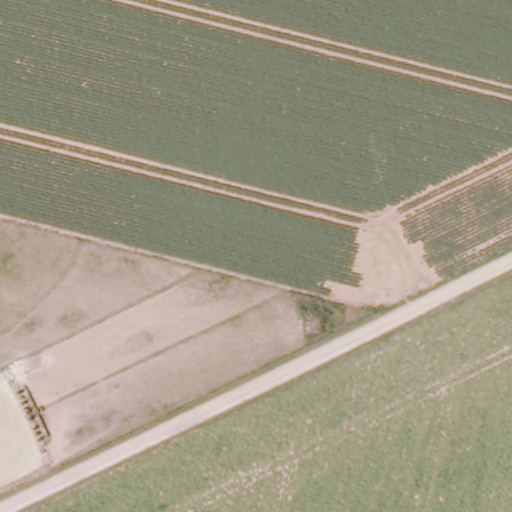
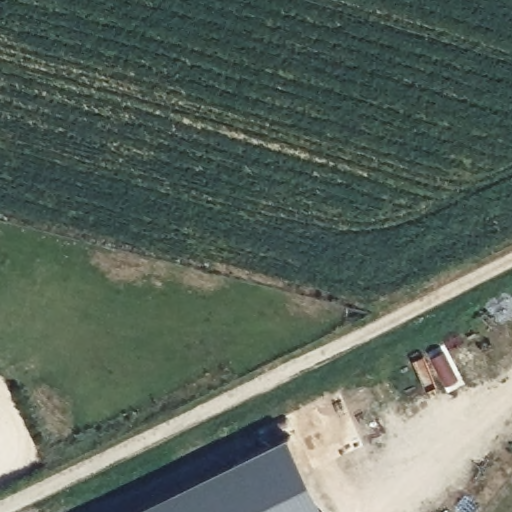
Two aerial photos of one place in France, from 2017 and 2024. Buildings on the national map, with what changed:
new [(141,512),(292,440),(327,512),(141,512)]

